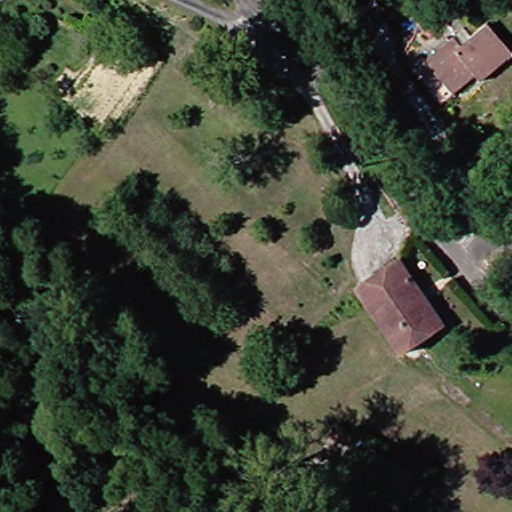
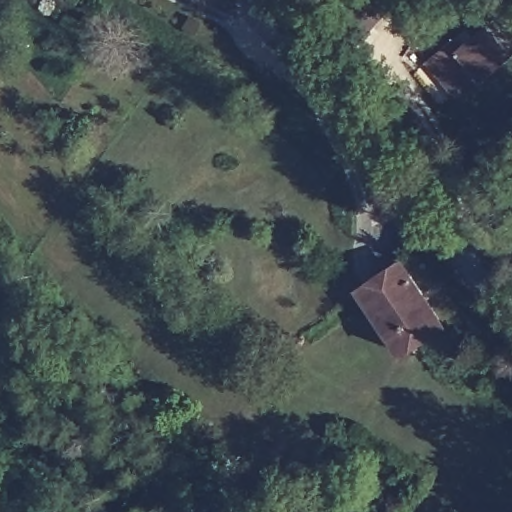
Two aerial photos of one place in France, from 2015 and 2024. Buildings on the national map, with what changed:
unchanged [(427,64),(436,57),(458,39),(470,55),(480,44),(475,38),(493,26),(512,49),(512,61),(488,82),(483,76),(464,90),(456,99),(427,64)]
unchanged [(441,332),(411,356),(365,294),(409,265),(428,296),(450,327),(441,332)]

